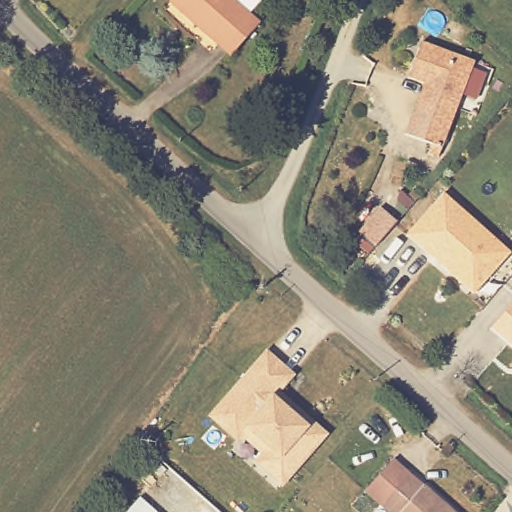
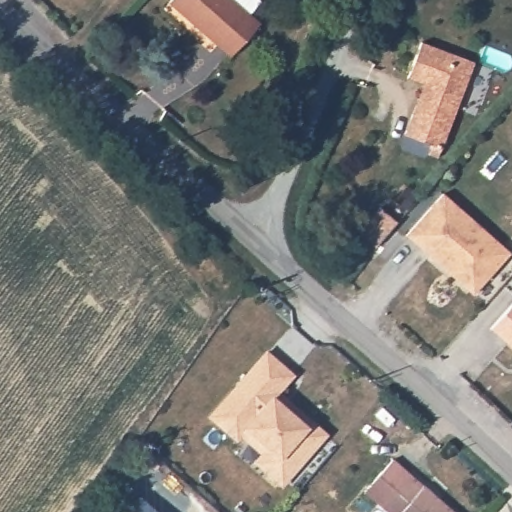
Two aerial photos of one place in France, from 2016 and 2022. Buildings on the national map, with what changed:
unchanged [(253,1),(240,14),(252,25),(223,57),(165,5),(169,0),(251,0),(253,1)]
unchanged [(472,63),(441,150),(404,137),(423,85),(406,80),(419,44),(472,63)]
unchanged [(406,233),(443,192),(509,251),(473,292),(406,233)]
unchanged [(397,221),(375,245),(359,230),(380,206),(397,221)]
unchanged [(512,305),(512,349),(491,330),(512,305)]
unchanged [(258,461),(267,450),(245,430),(238,438),(212,415),(268,352),(294,375),(274,397),(296,417),(301,411),(327,434),(283,484),(258,461)]
unchanged [(391,512),(366,490),(393,459),(452,512),(391,512)]

